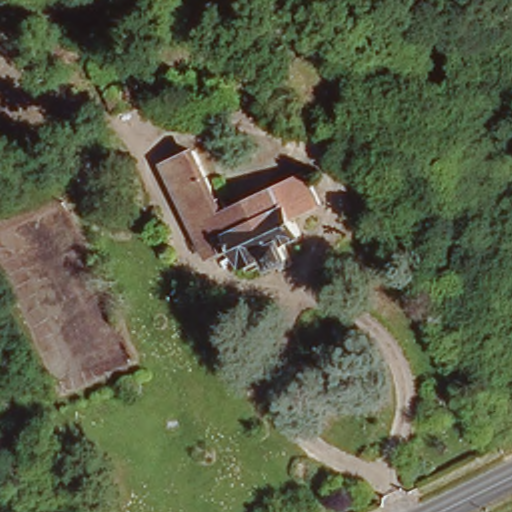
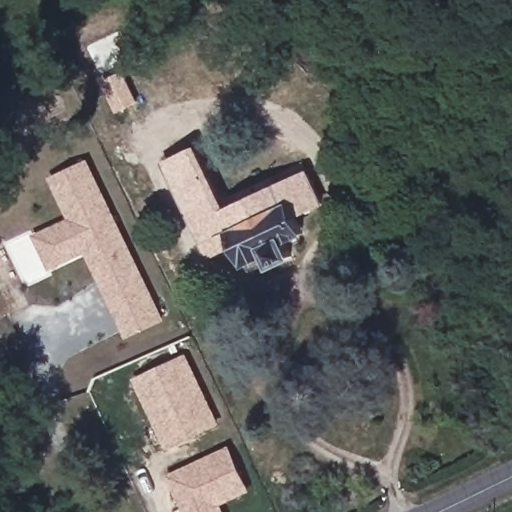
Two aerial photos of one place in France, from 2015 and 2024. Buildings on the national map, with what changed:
demolished [(112,88),(134,79),(144,101),(121,111),(112,88)]
unchanged [(249,276),(245,265),(238,253),(235,248),(206,260),(163,166),(194,153),(215,205),(222,203),(228,217),(284,192),(277,176),(303,166),(321,207),(308,213),(302,215),(290,220),(299,241),(282,248),(288,263),(271,271),(269,267),(261,271),(249,276)]
new [(127,339),(87,253),(50,270),(33,235),(70,218),(50,177),(90,158),(167,320),(127,339)]
new [(167,449),(133,378),(187,353),(221,425),(167,449)]
new [(222,505),(226,512),(184,512),(167,475),(230,446),(251,491),(222,505)]

